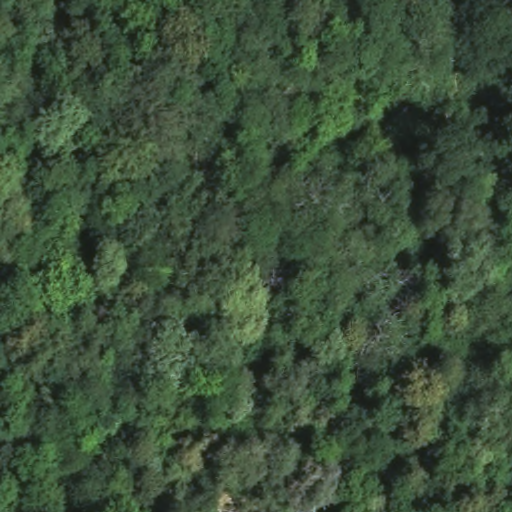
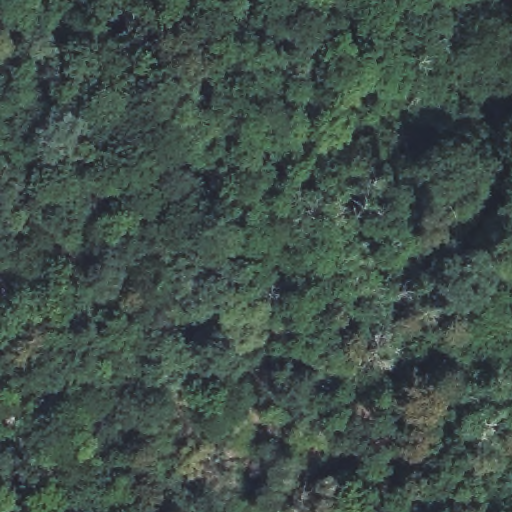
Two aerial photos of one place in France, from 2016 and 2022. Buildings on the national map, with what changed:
unchanged [(0,304),(0,292),(6,299),(0,304)]

